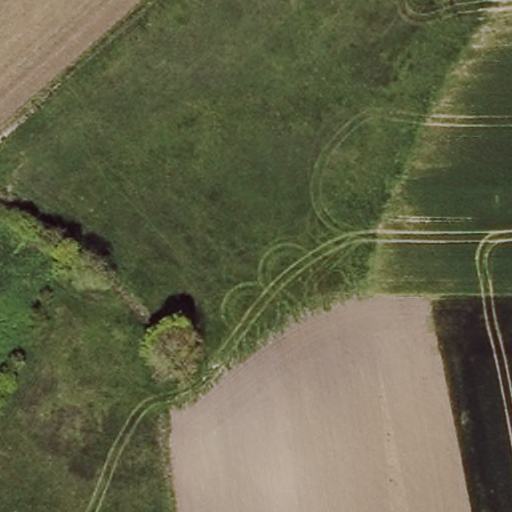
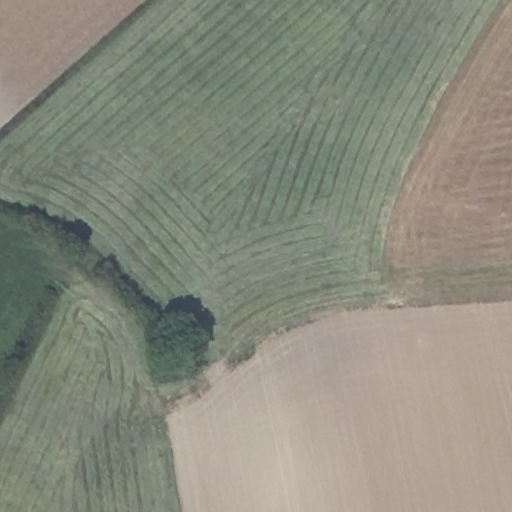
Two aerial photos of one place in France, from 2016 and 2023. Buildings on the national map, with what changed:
[]

